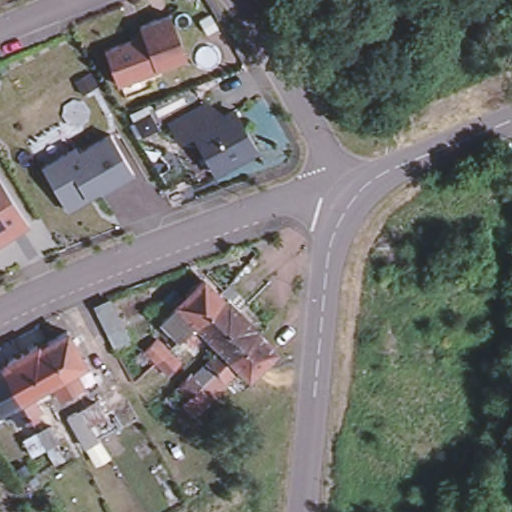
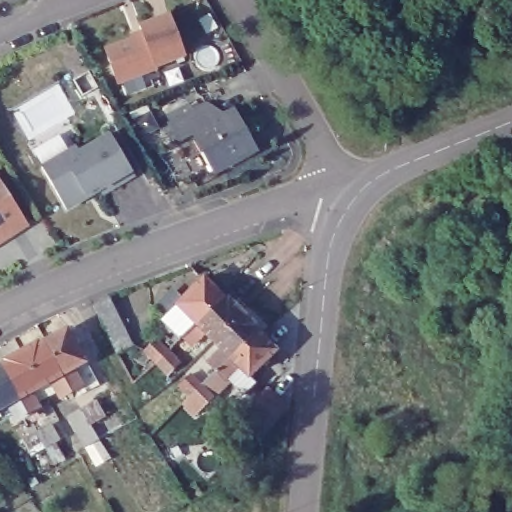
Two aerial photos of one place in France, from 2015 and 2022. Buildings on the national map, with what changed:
unchanged [(106,54),(138,41),(135,31),(165,20),(181,61),(151,72),(152,75),(113,90),(102,61),(106,54)]
unchanged [(255,151),(216,174),(195,135),(180,142),(171,125),(207,106),(225,117),(234,111),(255,151)]
unchanged [(145,120),(152,134),(138,141),(131,127),(145,120)]
unchanged [(136,173),(104,192),(100,185),(87,192),(86,196),(68,207),(44,165),(78,145),(81,151),(112,132),(136,173)]
unchanged [(0,238),(0,175),(28,220),(0,238)]
unchanged [(157,322),(198,281),(215,298),(177,338),(175,340),(157,322)]
unchanged [(110,295),(133,342),(117,350),(93,302),(110,295)]
unchanged [(200,331),(186,347),(177,338),(215,298),(222,304),(225,301),(237,313),(208,341),(200,331)]
unchanged [(202,363),(216,348),(208,341),(237,313),(250,325),(247,330),(251,333),(211,372),(202,363)]
unchanged [(63,327),(81,360),(69,365),(80,382),(68,390),(42,340),(63,327)]
unchanged [(254,336),(270,350),(245,376),(235,367),(220,381),(211,372),(251,333),(254,336)]
unchanged [(57,396),(45,377),(35,382),(17,350),(33,341),(35,343),(42,340),(68,390),(57,396)]
unchanged [(151,364),(139,352),(151,341),(163,352),(175,363),(162,376),(151,364)]
unchanged [(3,360),(2,357),(17,350),(35,382),(26,388),(36,408),(25,413),(0,365),(0,362),(3,360)]
unchanged [(13,418),(3,401),(0,403),(0,365),(25,413),(13,418)]
unchanged [(186,399),(175,387),(186,375),(198,387),(210,398),(197,410),(186,399)]
unchanged [(62,422),(76,415),(91,407),(100,422),(85,430),(71,437),(62,422)]
unchanged [(48,432),(56,445),(42,453),(27,461),(20,446),(33,439),(48,432)]

